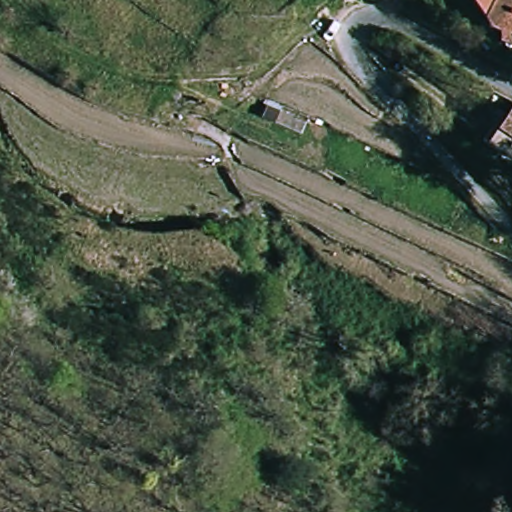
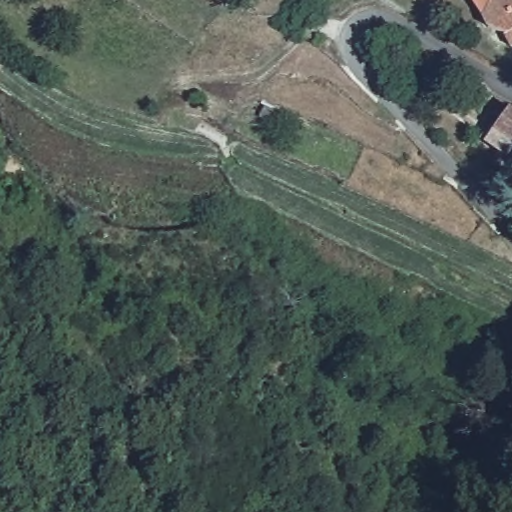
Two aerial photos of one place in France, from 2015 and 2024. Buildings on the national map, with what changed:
unchanged [(512,47),(510,47),(501,29),(494,27),(481,19),(489,0),(512,0),(512,47)]
unchanged [(508,106),(512,109),(512,139),(493,125),(508,106)]

